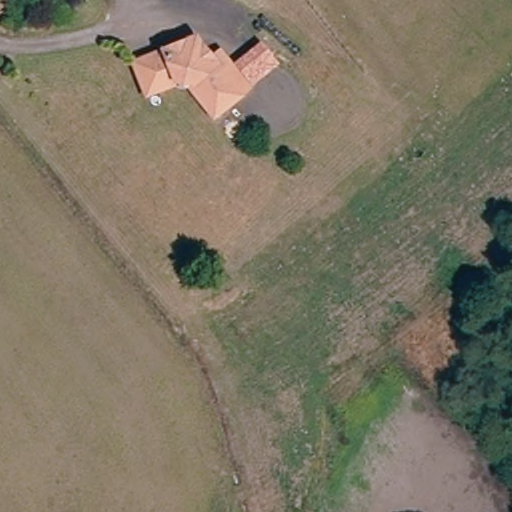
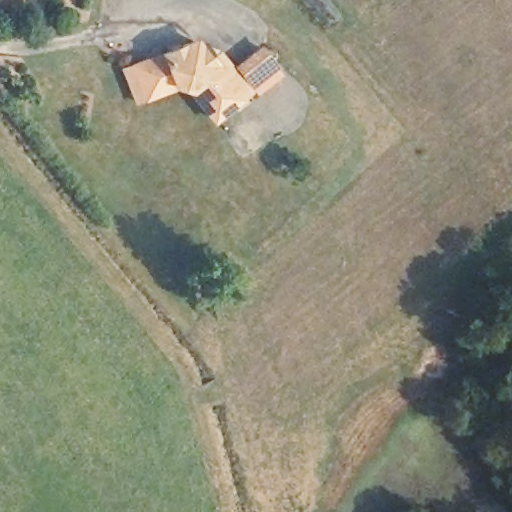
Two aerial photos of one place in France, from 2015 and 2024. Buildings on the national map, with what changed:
unchanged [(259,42),(279,65),(248,91),(228,68),(259,42)]
unchanged [(207,68),(223,62),(254,98),(220,126),(180,86),(143,100),(134,74),(148,69),(194,51),(207,68)]

